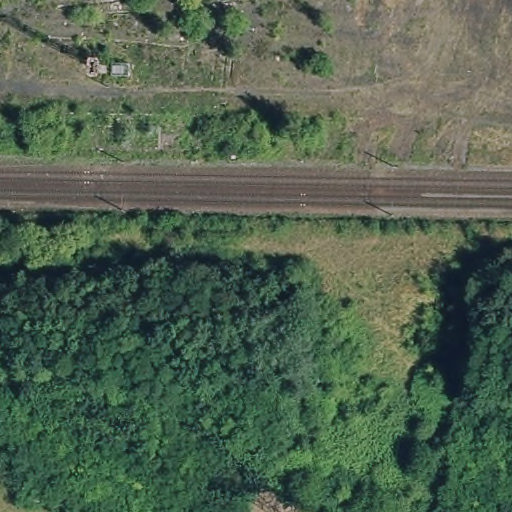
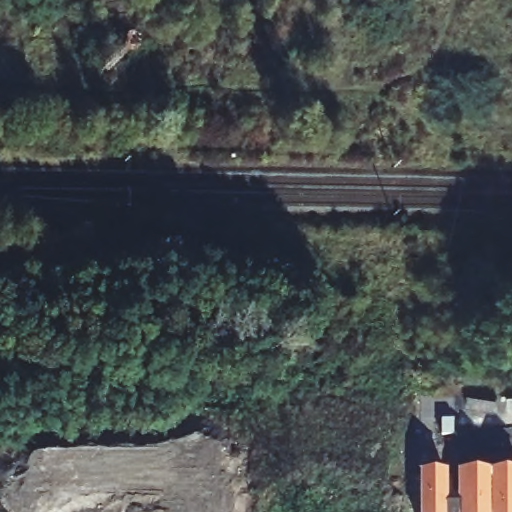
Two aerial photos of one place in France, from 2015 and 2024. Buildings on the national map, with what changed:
new [(420,472),(448,471),(448,505),(458,505),(457,471),(512,471),(512,512),(420,512),(420,472)]

